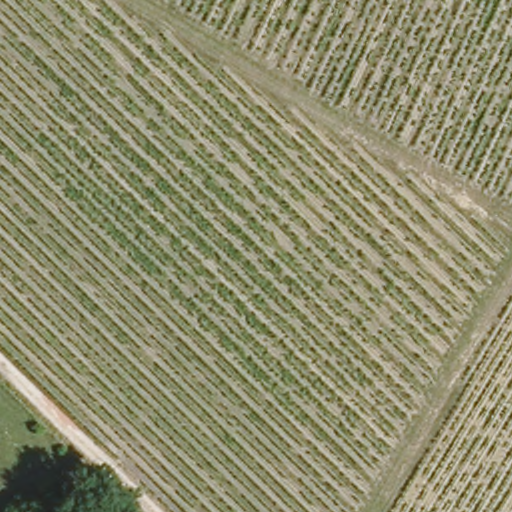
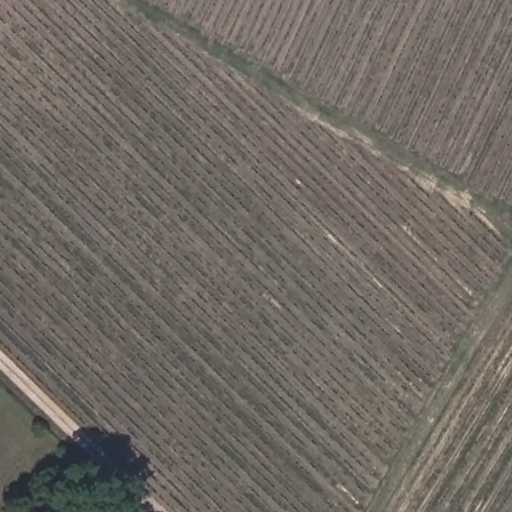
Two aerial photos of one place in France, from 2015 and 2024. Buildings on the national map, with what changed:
[]

